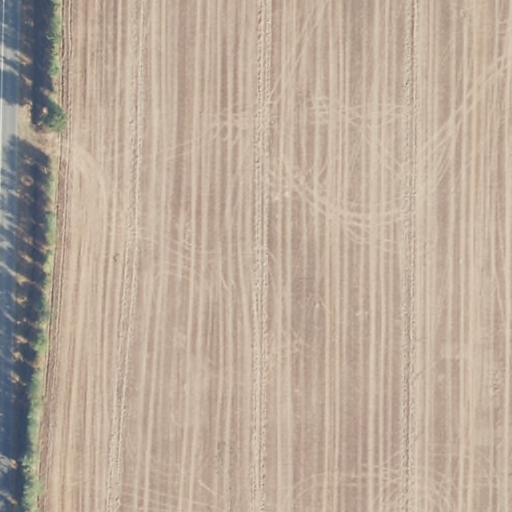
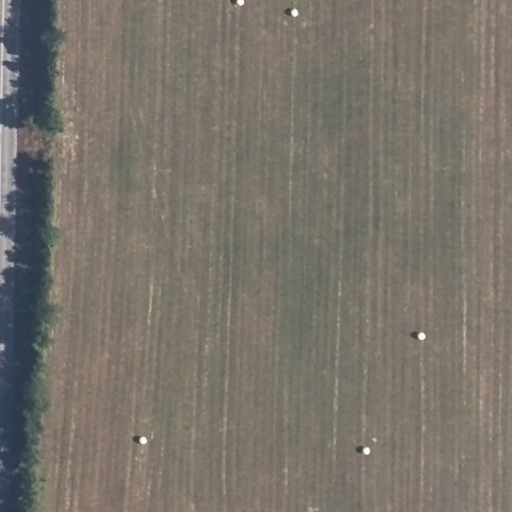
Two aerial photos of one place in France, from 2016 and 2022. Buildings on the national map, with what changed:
[]

